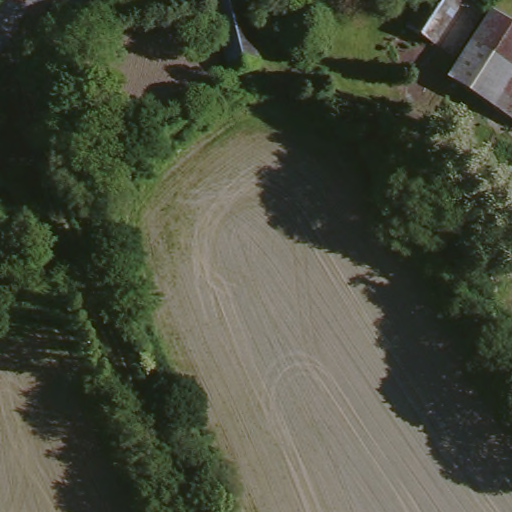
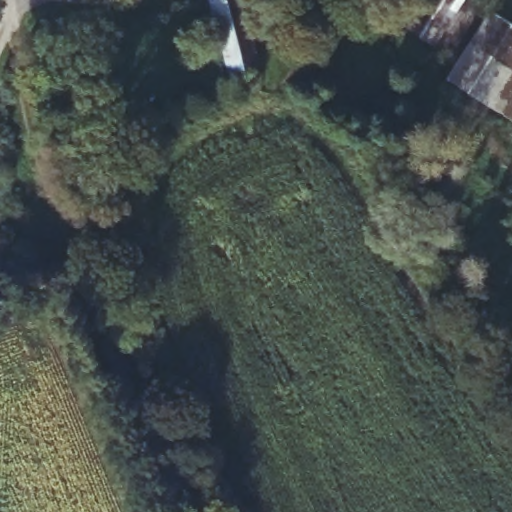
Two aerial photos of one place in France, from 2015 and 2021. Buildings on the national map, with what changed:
unchanged [(203,5),(218,0),(234,0),(258,74),(228,82),(219,57),(203,5)]
unchanged [(435,52),(404,31),(424,0),(465,0),(471,4),(435,52)]
unchanged [(435,52),(471,4),(483,14),(451,64),(435,52)]
unchanged [(512,31),(512,126),(444,81),(454,66),(488,16),(512,31)]
unchanged [(3,224),(0,224),(0,201),(2,201),(3,224)]

